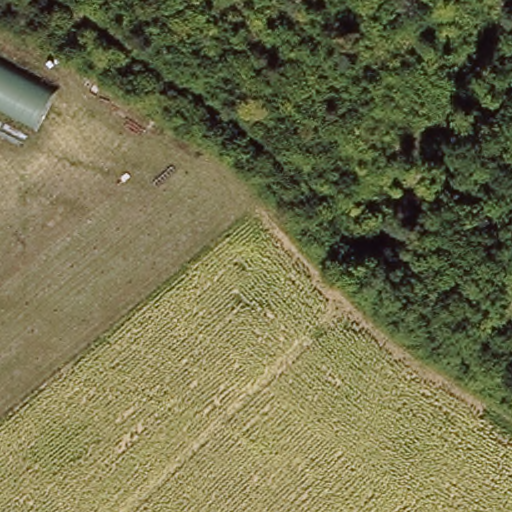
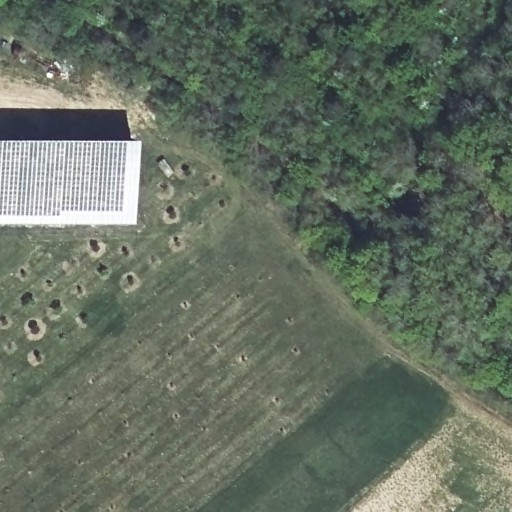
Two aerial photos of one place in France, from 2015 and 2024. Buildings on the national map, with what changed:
new [(40,80),(21,116),(0,106),(0,60),(40,80)]
new [(134,135),(132,222),(35,219),(0,220),(0,135),(134,135)]

